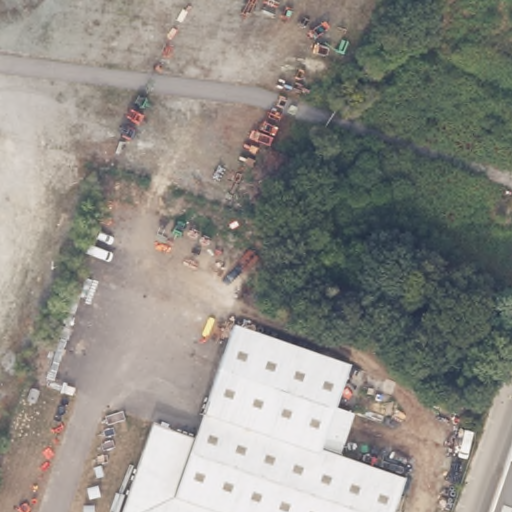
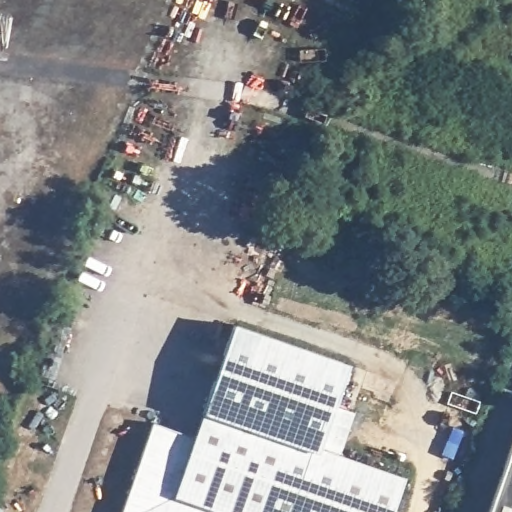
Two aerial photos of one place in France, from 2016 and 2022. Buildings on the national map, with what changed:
unchanged [(195,437),(234,325),(349,365),(335,406),(353,413),(339,455),(405,478),(393,512),(122,512),(153,422),(195,437)]
unchanged [(512,439),(512,512),(487,512),(512,439)]

